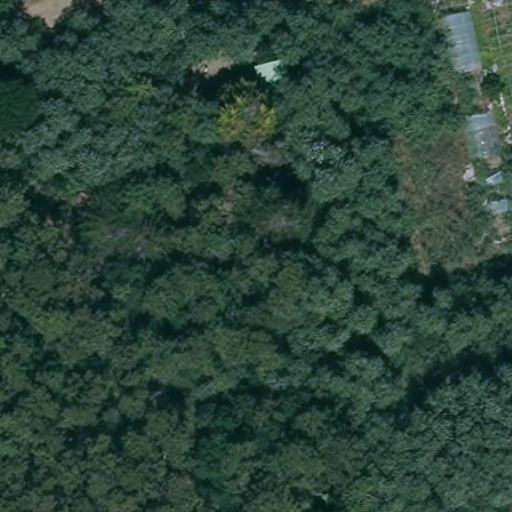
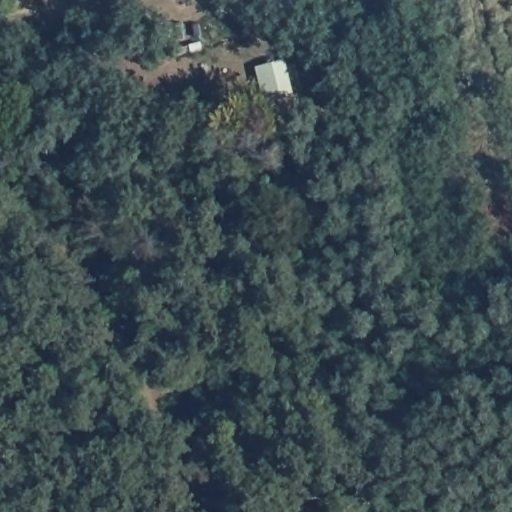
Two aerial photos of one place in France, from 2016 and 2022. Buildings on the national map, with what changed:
demolished [(462,110),(430,115),(405,10),(443,0),(468,0),(470,10),(498,0),(512,0),(512,240),(495,244),(462,110)]

